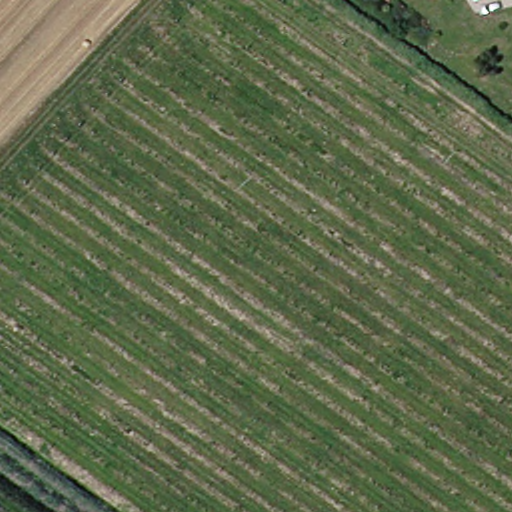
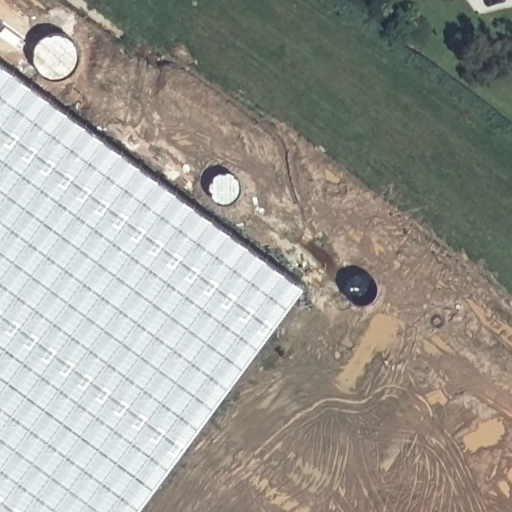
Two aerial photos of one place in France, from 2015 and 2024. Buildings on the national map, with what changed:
new [(138,512),(0,512),(0,58),(307,284),(138,512)]

